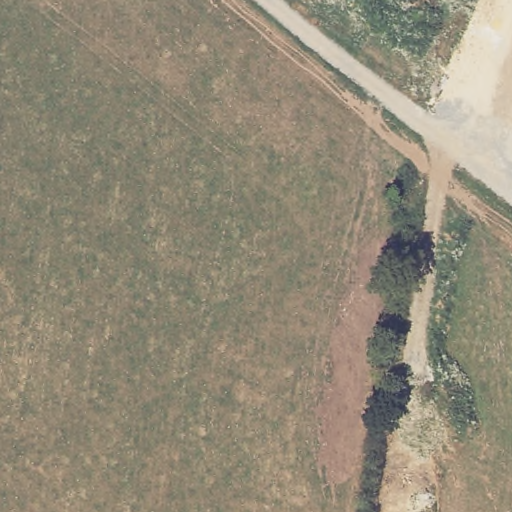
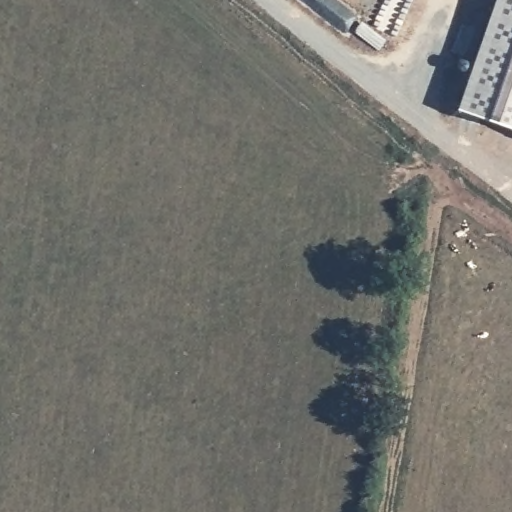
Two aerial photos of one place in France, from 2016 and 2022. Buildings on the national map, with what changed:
new [(501,0),(512,0),(512,128),(461,110),(501,0)]

